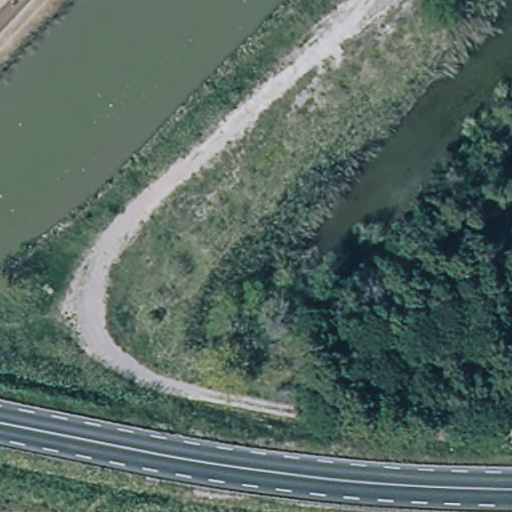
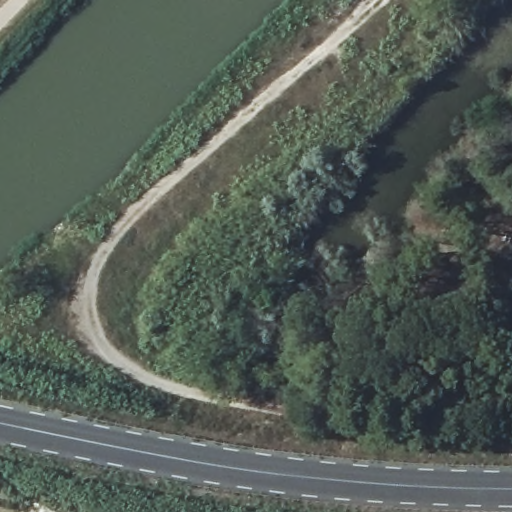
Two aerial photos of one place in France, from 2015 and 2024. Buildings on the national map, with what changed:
[]

